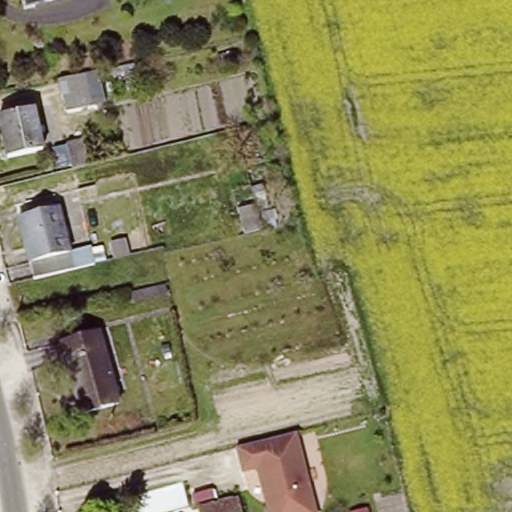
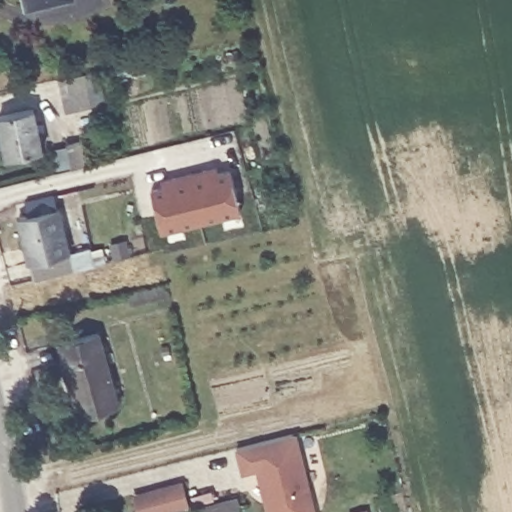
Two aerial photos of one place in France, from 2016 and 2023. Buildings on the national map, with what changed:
unchanged [(33,15),(30,0),(70,0),(71,6),(33,15)]
unchanged [(60,79),(87,74),(102,70),(108,101),(93,104),(66,109),(60,79)]
unchanged [(45,155),(12,162),(2,122),(35,114),(45,155)]
new [(158,220),(153,201),(152,187),(163,185),(161,179),(217,165),(219,172),(229,170),(233,182),(238,200),(240,213),(162,232),(158,220)]
unchanged [(276,199),(293,196),(299,219),(282,223),(276,199)]
unchanged [(71,271),(32,279),(18,221),(57,212),(71,271)]
unchanged [(63,348),(100,336),(122,404),(86,416),(63,348)]
unchanged [(314,512),(265,512),(255,471),(240,474),(235,449),(295,433),(314,512)]
new [(192,503),(160,512),(139,512),(135,493),(185,479),(192,503)]
unchanged [(240,512),(197,512),(195,504),(235,494),(240,512)]

